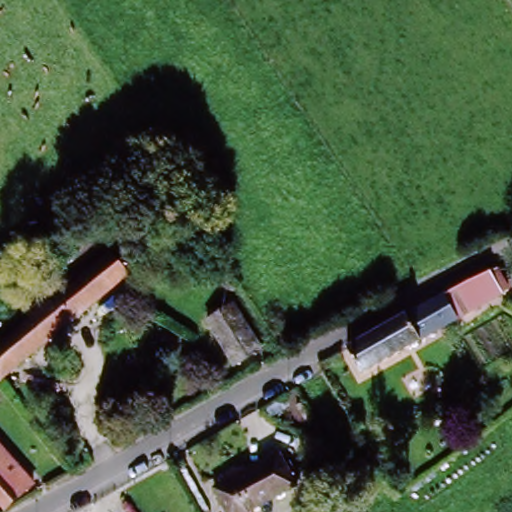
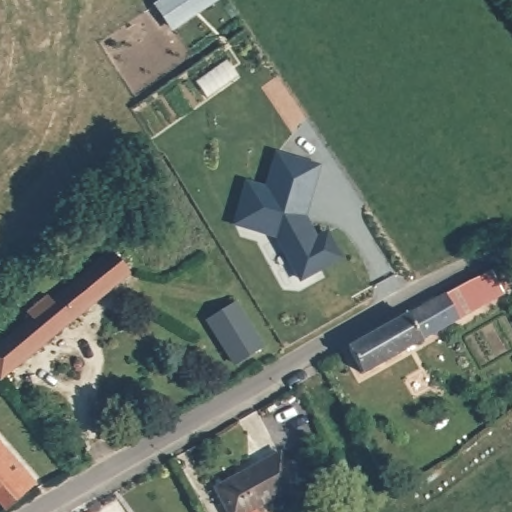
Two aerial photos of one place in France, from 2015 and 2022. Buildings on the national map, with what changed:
new [(215,0),(217,1),(175,29),(158,4),(165,0),(215,0)]
new [(276,240),(234,229),(245,188),(265,194),(274,159),(315,169),(306,205),(301,204),(297,215),(300,224),(312,246),(327,237),(340,260),(300,283),(276,240)]
unchanged [(3,334),(44,305),(37,295),(68,275),(75,284),(125,249),(142,275),(20,361),(0,374),(0,336),(3,334)]
unchanged [(501,299),(417,346),(403,318),(487,272),(501,299)]
unchanged [(236,365),(211,320),(240,304),(267,347),(236,365)]
unchanged [(356,380),(339,352),(403,318),(417,346),(356,380)]
unchanged [(0,501),(0,441),(39,482),(8,510),(0,501)]
unchanged [(292,481),(244,512),(230,512),(215,489),(275,453),(292,481)]

